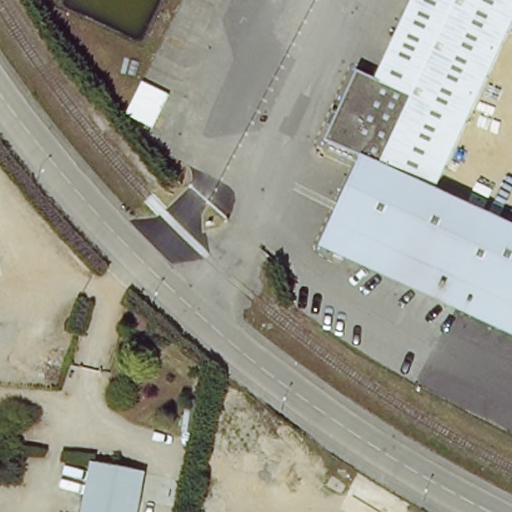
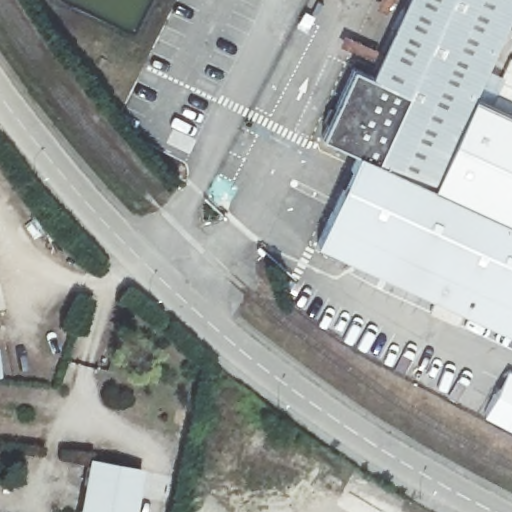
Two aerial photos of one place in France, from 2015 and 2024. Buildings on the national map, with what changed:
unchanged [(319,118),(330,97),(334,97),(355,52),(375,64),(405,0),(512,0),(512,24),(439,175),(324,121),(319,118)]
new [(439,175),(476,99),(512,116),(512,219),(437,182),(439,175)]
unchanged [(512,219),(512,334),(319,234),(359,151),(320,131),(324,121),(439,175),(437,182),(512,219)]
new [(512,371),(512,431),(484,416),(508,369),(512,371)]
unchanged [(78,512),(88,461),(141,471),(133,512),(78,512)]

